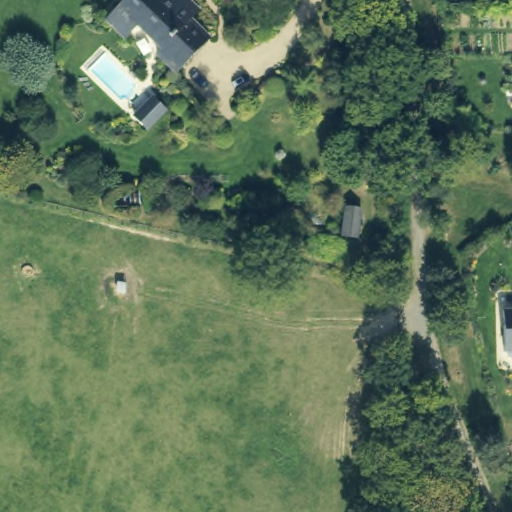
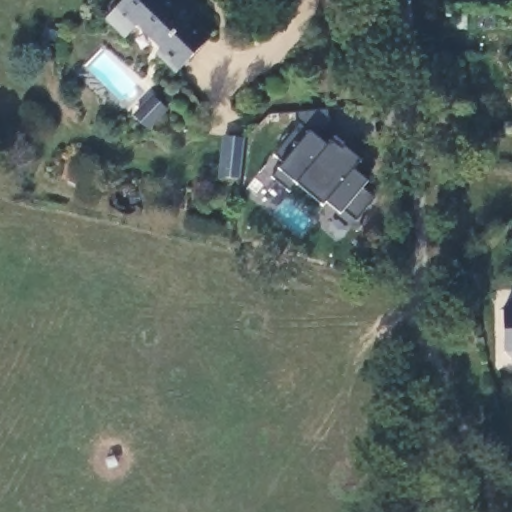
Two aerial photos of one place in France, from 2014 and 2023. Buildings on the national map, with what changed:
unchanged [(209,41),(175,74),(159,57),(164,51),(136,22),(131,26),(114,7),(121,0),(189,0),(201,12),(192,22),(209,41)]
unchanged [(160,106),(140,126),(127,112),(147,93),(160,106)]
new [(340,214),(327,204),(324,206),(296,183),(290,192),(272,177),(279,171),(284,164),(272,156),(296,130),(295,112),(327,111),(326,143),(333,136),(374,171),(363,185),(377,196),(354,227),(340,214)]
demolished [(353,236),(337,234),(343,203),(358,206),(353,236)]
unchanged [(504,345),(504,301),(512,301),(512,352),(510,352),(504,345)]

